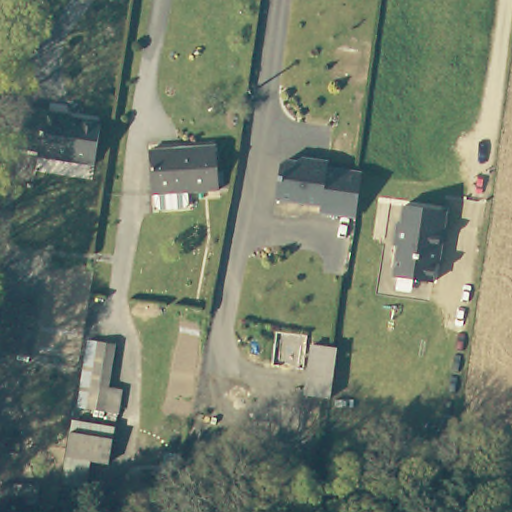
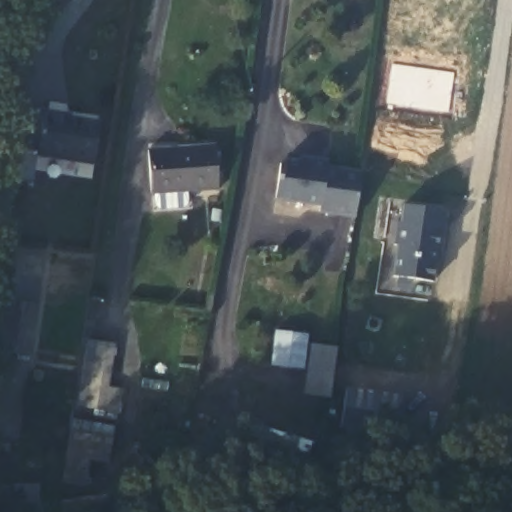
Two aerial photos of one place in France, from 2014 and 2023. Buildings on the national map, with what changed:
unchanged [(47,113),(46,116),(101,124),(94,163),(37,156),(37,152),(16,148),(24,109),(47,113)]
unchanged [(223,190),(154,197),(148,148),(219,142),(223,190)]
unchanged [(325,155),(324,162),(358,167),(357,179),(352,212),(317,206),(317,200),(272,193),(277,158),(282,154),(306,157),(307,153),(325,155)]
unchanged [(394,273),(398,242),(395,241),(398,218),(402,219),(405,201),(444,207),(442,224),(446,225),(442,248),(438,248),(433,279),(394,273)]
unchanged [(37,303),(31,352),(0,348),(0,333),(5,299),(37,303)]
unchanged [(114,344),(107,388),(121,390),(117,413),(77,407),(87,341),(114,344)]
unchanged [(337,348),(330,397),(306,394),(313,344),(337,348)]
unchanged [(107,434),(105,458),(64,454),(66,431),(107,434)]

